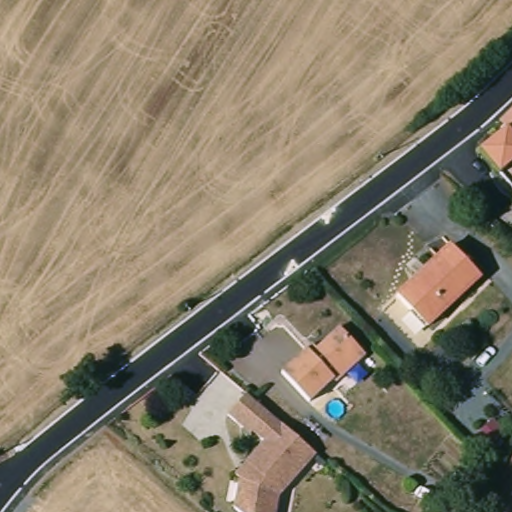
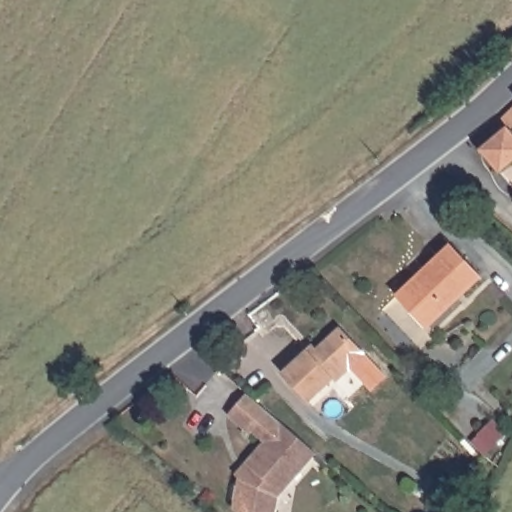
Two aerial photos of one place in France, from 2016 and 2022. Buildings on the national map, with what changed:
unchanged [(511,127),(503,116),(511,110),(512,109),(512,161),(501,170),(483,147),(511,127)]
unchanged [(481,272),(427,324),(397,293),(452,241),(481,272)]
unchanged [(331,381),(307,404),(279,375),(305,351),(310,345),(314,350),(337,328),(363,356),(333,383),(331,381)]
unchanged [(242,473),(250,465),(244,459),(262,438),(249,427),(247,430),(225,411),(243,389),(266,408),(313,450),(275,499),(273,512),(230,512),(235,472),(242,473)]
unchanged [(472,489),(458,512),(446,503),(460,481),(472,489)]

